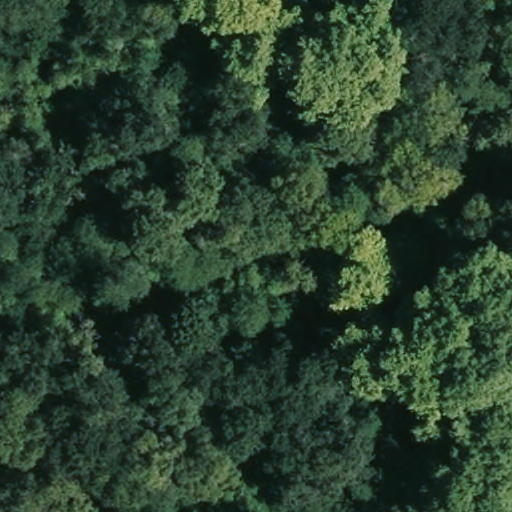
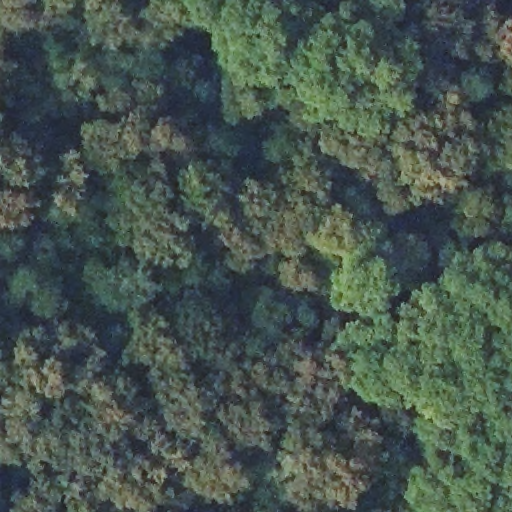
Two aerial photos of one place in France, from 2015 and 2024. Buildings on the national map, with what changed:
[]

